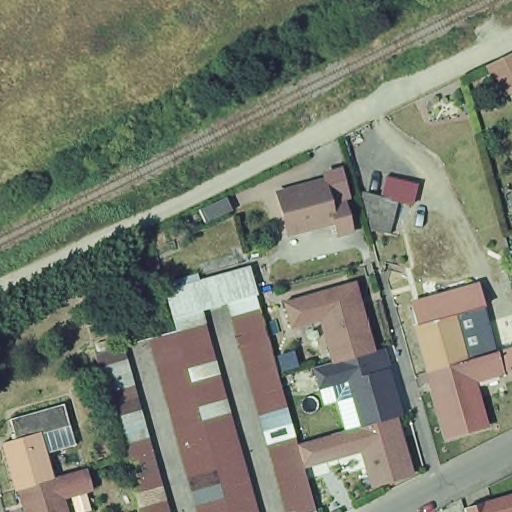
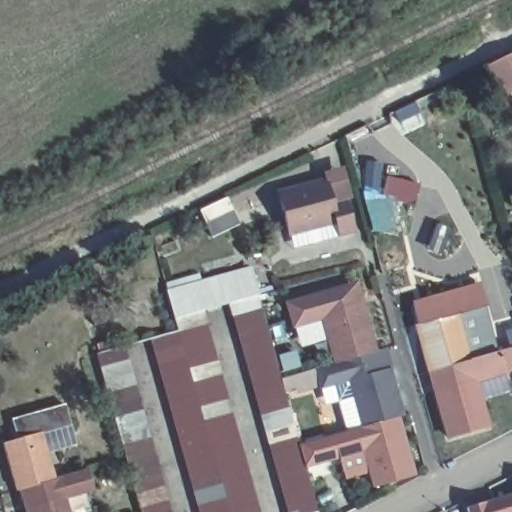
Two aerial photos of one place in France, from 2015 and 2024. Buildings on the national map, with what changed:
unchanged [(512,50),(512,89),(499,96),(486,65),(512,50)]
unchanged [(341,204),(351,238),(334,242),(331,227),(286,240),(274,198),(321,185),(327,208),(341,204)]
unchanged [(172,429),(169,417),(166,404),(162,391),(158,378),(155,365),(151,353),(148,338),(163,334),(173,331),(169,319),(168,312),(162,293),(180,288),(219,277),(244,269),(252,295),(256,310),(259,323),(263,334),(266,348),(270,361),(274,374),(274,377),(277,387),(281,399),(284,413),(288,424),(291,437),(293,444),(294,449),(298,462),(301,475),(306,488),(309,500),(312,512),(284,512),(283,507),(279,495),(276,482),(272,469),(271,464),(269,457),(266,444),(262,431),(259,419),(255,406),(251,394),(248,381),(244,368),(241,355),(238,342),(234,330),(231,317),(227,302),(196,311),(200,325),(203,338),(207,351),(211,364),(214,377),(218,389),(221,402),(224,414),(228,428),(231,440),(234,453),(238,465),(241,478),(245,491),(248,504),(251,512),(195,512),(193,506),(189,492),(186,480),(183,468),(179,454),(176,442),(172,429)]
unchanged [(429,389),(426,371),(413,324),(429,320),(424,304),(477,289),(483,308),(454,316),(466,359),(491,352),(497,372),(468,381),(480,425),(443,436),(429,389)]
unchanged [(396,414),(387,416),(374,420),(357,425),(344,380),(316,388),(311,367),(329,362),(317,315),(289,323),(284,305),(338,291),(343,308),(355,304),(368,351),(371,359),(381,357),(384,367),(396,414)]
unchanged [(118,427),(115,415),(111,402),(108,389),(105,377),(104,376),(101,364),(97,349),(123,341),(125,351),(126,357),(130,369),(133,382),(137,395),(141,407),(144,420),(147,432),(151,446),(154,458),(158,472),(161,483),(164,496),(168,506),(168,510),(169,512),(142,512),(141,511),(141,509),(139,503),(136,490),(133,478),(128,465),(126,455),(125,453),(121,439),(118,427)]
unchanged [(61,500),(64,512),(22,512),(21,508),(16,489),(13,490),(2,443),(16,439),(11,422),(63,407),(68,425),(38,433),(51,479),(79,471),(85,494),(61,500)]
unchanged [(393,436),(403,474),(364,485),(355,449),(331,456),(325,435),(351,427),(357,425),(374,420),(380,439),(393,436)]
unchanged [(512,501),(512,512),(495,512),(494,506),(512,501)]
unchanged [(487,503),(490,512),(469,512),(468,508),(487,503)]

